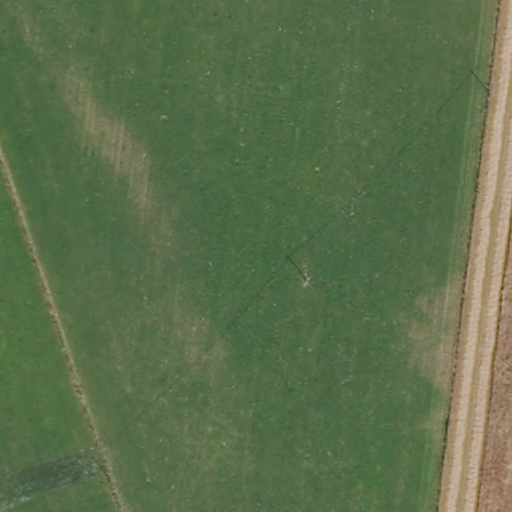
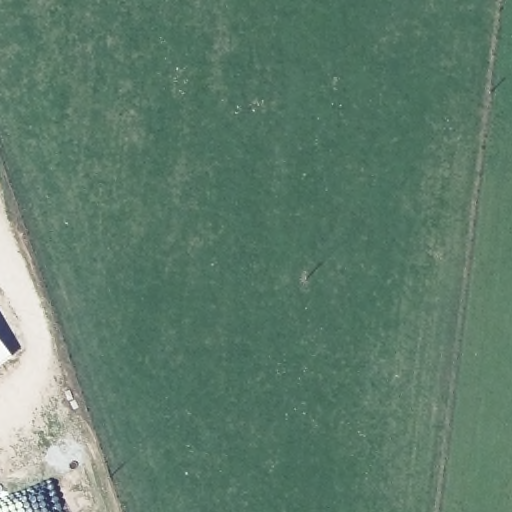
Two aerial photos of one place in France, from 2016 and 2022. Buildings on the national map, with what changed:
new [(15,357),(0,368),(0,338),(15,357)]

